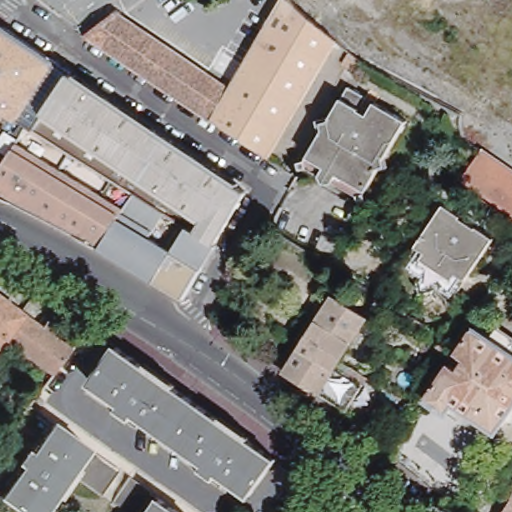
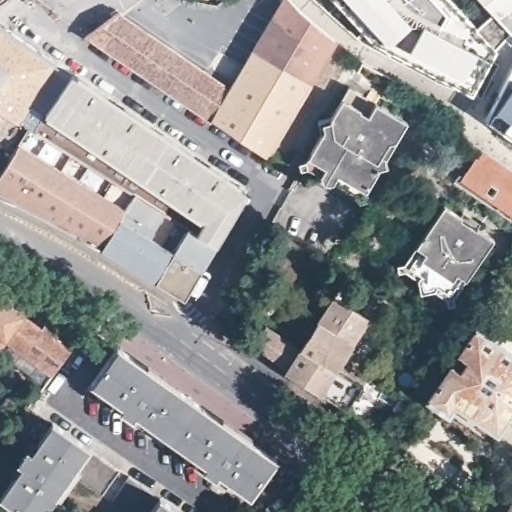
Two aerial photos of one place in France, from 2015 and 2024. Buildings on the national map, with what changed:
unchanged [(84,37),(118,10),(229,85),(277,0),(289,0),(338,43),(269,160),(84,37)]
demolished [(335,8),(329,0),(346,0),(335,8)]
new [(489,49),(464,92),(364,34),(330,0),(444,0),(489,49)]
new [(494,54),(489,49),(474,32),(493,12),(481,0),(512,0),(512,46),(504,40),(494,54)]
unchanged [(0,99),(0,17),(3,17),(5,19),(8,20),(76,67),(38,124),(33,120),(0,99)]
new [(484,119),(512,66),(512,139),(484,119)]
unchanged [(141,187),(38,124),(76,67),(110,91),(252,186),(221,238),(141,187)]
unchanged [(371,95),(365,107),(374,112),(381,100),(412,119),(368,196),(309,162),(353,85),(371,95)]
unchanged [(0,171),(0,99),(33,120),(0,171)]
unchanged [(26,199),(0,186),(0,171),(33,120),(38,124),(141,187),(106,242),(45,209),(26,199)]
new [(512,169),(512,217),(459,180),(482,148),(512,169)]
unchanged [(221,238),(189,293),(113,246),(106,242),(141,187),(221,238)]
unchanged [(454,294),(439,283),(424,286),(422,272),(407,261),(415,249),(449,199),(499,232),(464,283),(456,295),(454,294)]
unchanged [(251,311),(241,328),(216,312),(226,296),(251,311)]
unchanged [(0,348),(0,301),(20,315),(29,303),(50,315),(46,323),(60,334),(56,340),(71,351),(54,375),(6,340),(0,348)]
unchanged [(283,377),(329,301),(362,321),(336,365),(363,382),(343,415),(284,378),(283,377)]
unchanged [(436,338),(440,331),(438,330),(446,318),(458,325),(450,337),(445,345),(436,338)]
unchanged [(493,427),(492,426),(449,399),(444,407),(423,393),(469,323),(484,333),(492,323),(512,336),(512,399),(493,427)]
unchanged [(256,488),(226,468),(223,471),(206,460),(208,455),(144,409),(141,412),(123,400),(125,395),(98,376),(123,341),(280,453),(256,488)]
unchanged [(38,407),(29,402),(36,393),(43,399),(38,407)]
unchanged [(71,470),(40,512),(28,512),(0,492),(23,462),(19,459),(19,456),(28,445),(32,447),(35,443),(19,432),(38,407),(119,466),(101,492),(71,470)]
unchanged [(129,478),(176,512),(124,512),(111,503),(129,478)]
unchanged [(502,512),(512,495),(512,512),(502,512)]
unchanged [(335,512),(339,507),(345,512),(335,512)]

